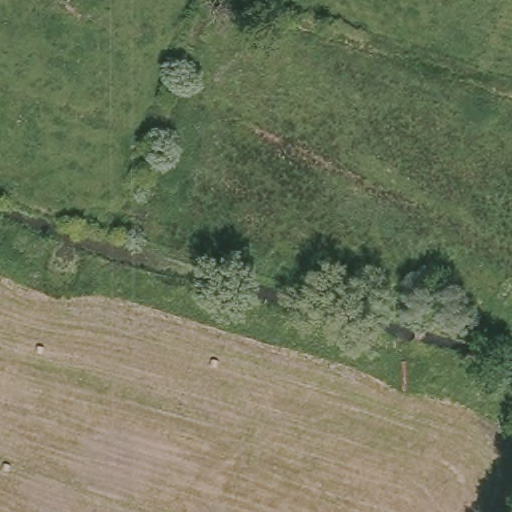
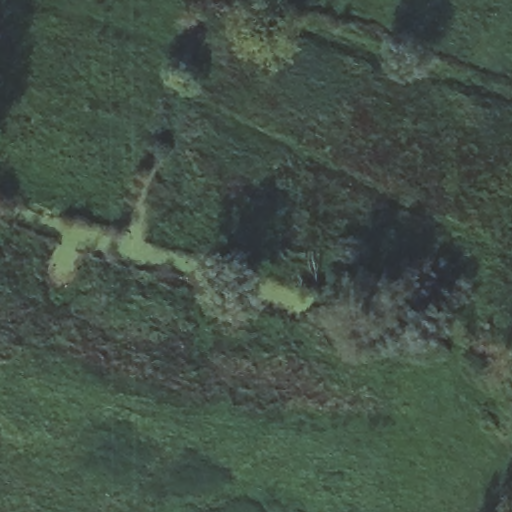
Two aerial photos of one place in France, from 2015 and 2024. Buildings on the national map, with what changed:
[]

